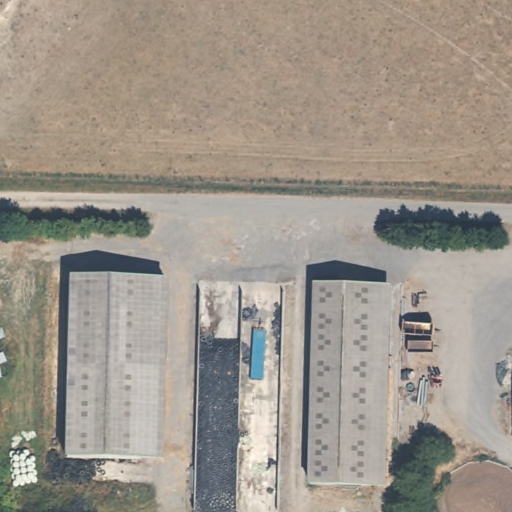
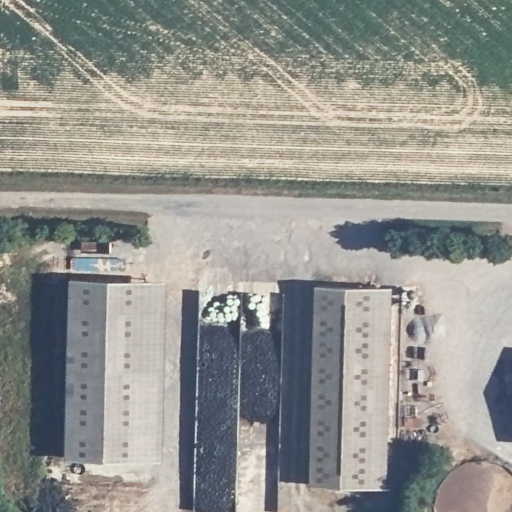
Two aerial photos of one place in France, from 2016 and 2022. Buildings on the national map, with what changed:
unchanged [(75,459),(82,278),(157,282),(149,462),(75,459)]
unchanged [(392,286),(383,487),(308,485),(317,283),(392,286)]

